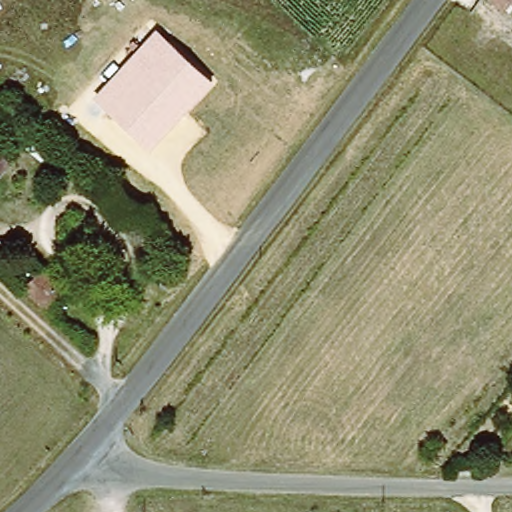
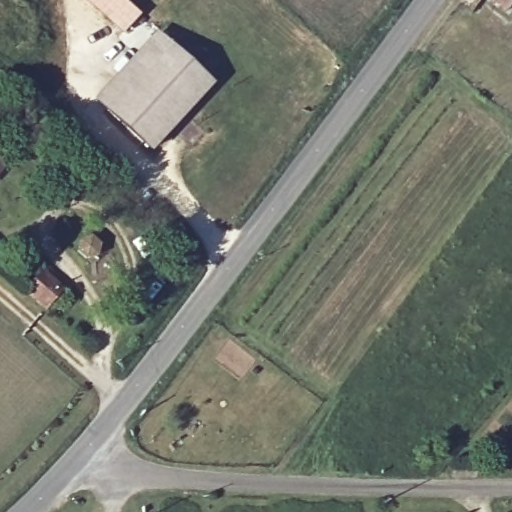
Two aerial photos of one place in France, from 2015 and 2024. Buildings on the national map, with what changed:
new [(87,0),(126,0),(141,14),(124,33),(87,0)]
unchanged [(485,0),(512,0),(512,5),(505,15),(485,0)]
unchanged [(215,83),(154,150),(96,98),(157,30),(215,83)]
unchanged [(9,164),(0,176),(0,156),(9,164)]
unchanged [(42,243),(62,260),(39,289),(18,270),(42,243)]

